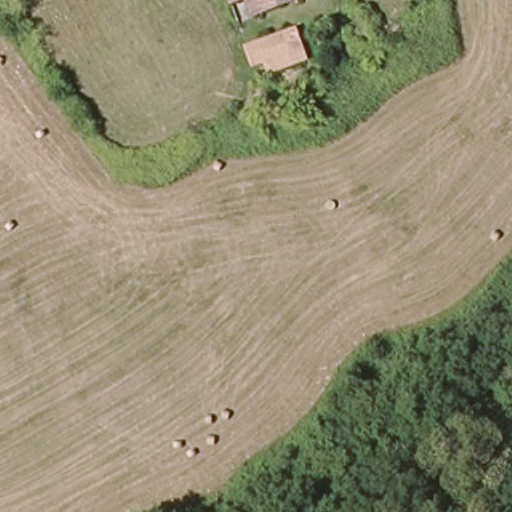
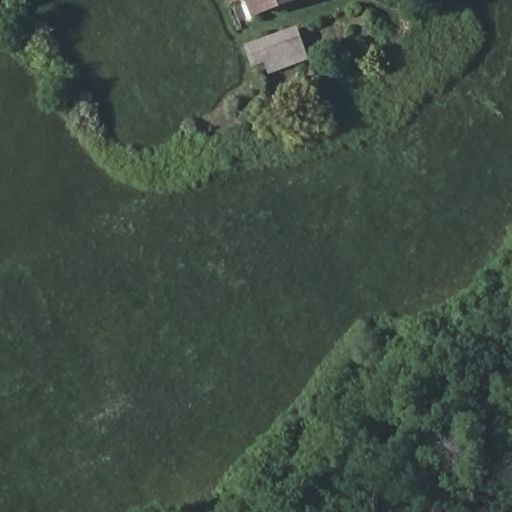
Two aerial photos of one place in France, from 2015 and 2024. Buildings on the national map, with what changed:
unchanged [(234,5),(232,0),(246,0),(234,5)]
unchanged [(258,15),(253,0),(297,0),(258,15)]
unchanged [(249,53),(297,34),(310,66),(275,79),(272,69),(258,75),(255,67),(249,53)]

